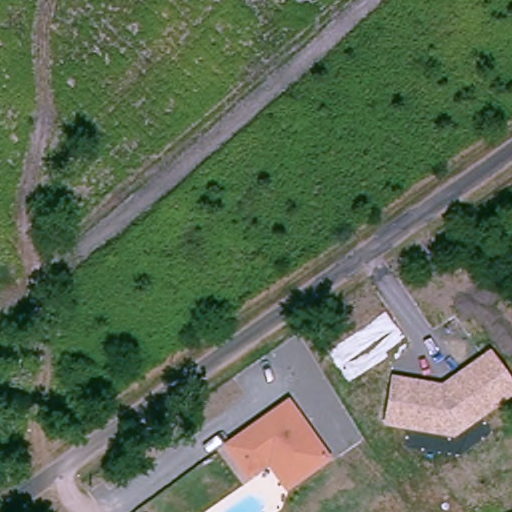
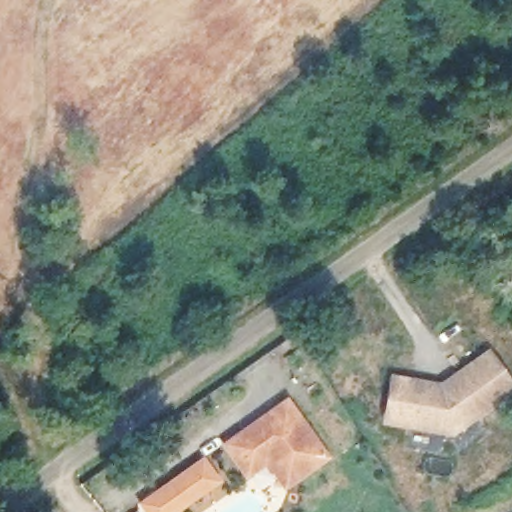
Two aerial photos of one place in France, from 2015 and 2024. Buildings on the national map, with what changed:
unchanged [(443,390),(490,354),(499,366),(512,383),(512,392),(456,435),(405,429),(388,426),(394,383),(425,388),(443,390)]
unchanged [(264,462),(244,476),(223,445),(285,401),(324,458),(293,480),(282,487),(264,462)]
new [(222,482),(180,512),(145,512),(139,505),(205,457),(222,482)]

